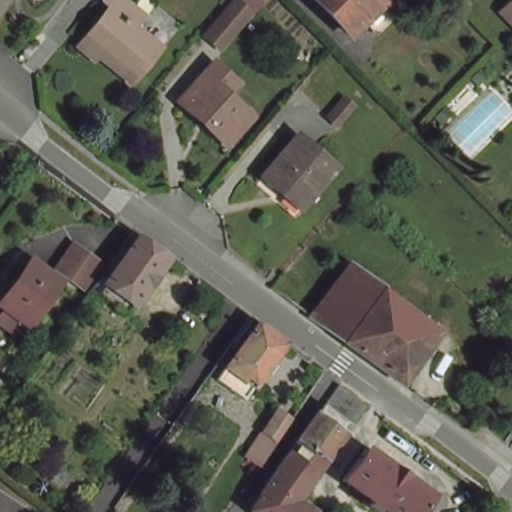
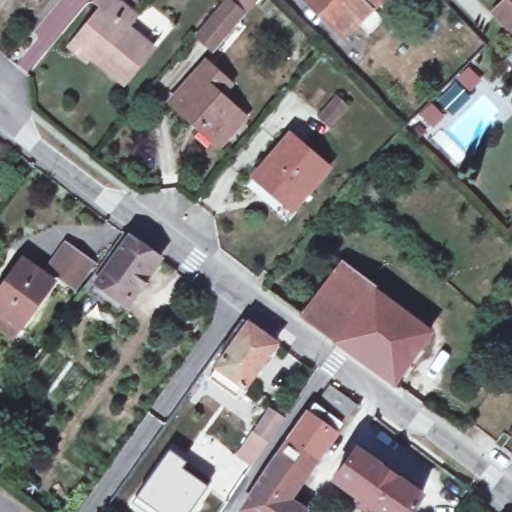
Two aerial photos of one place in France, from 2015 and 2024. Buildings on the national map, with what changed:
unchanged [(154,45),(126,80),(78,40),(108,6),(100,0),(126,0),(135,8),(125,20),(154,45)]
unchanged [(219,0),(245,0),(246,0),(216,35),(201,21),(219,0)]
unchanged [(341,33),(309,0),(375,0),(341,33)]
unchanged [(512,19),(494,0),(512,0),(512,19)]
unchanged [(238,122),(218,145),(174,105),(204,71),(228,92),(218,105),(238,122)]
unchanged [(329,166),(296,207),(258,175),(292,134),(329,166)]
unchanged [(123,313),(86,286),(128,226),(140,235),(106,281),(133,300),(123,313)]
unchanged [(146,239),(166,254),(133,300),(106,281),(140,235),(146,239)]
unchanged [(98,258),(80,285),(53,267),(71,240),(98,258)]
unchanged [(58,280),(26,324),(0,305),(0,295),(28,256),(58,280)]
unchanged [(393,384),(301,317),(326,283),(339,265),(373,291),(429,334),(393,384)]
unchanged [(211,380),(219,368),(235,346),(228,340),(243,318),(278,342),(245,388),(236,400),(211,380)]
unchanged [(311,407),(321,393),(329,382),(358,405),(350,415),(341,428),(316,461),(288,440),(311,407)]
unchanged [(241,458),(271,412),(284,423),(254,468),(241,458)]
unchanged [(294,493),(305,502),(298,512),(239,512),(262,475),(278,453),(288,440),(316,461),(294,493)]
unchanged [(408,512),(374,512),(371,510),(370,512),(364,512),(356,505),(359,500),(332,480),(357,447),(421,495),(408,512)]
new [(186,460),(182,467),(210,486),(191,512),(141,512),(129,504),(169,448),(186,460)]

